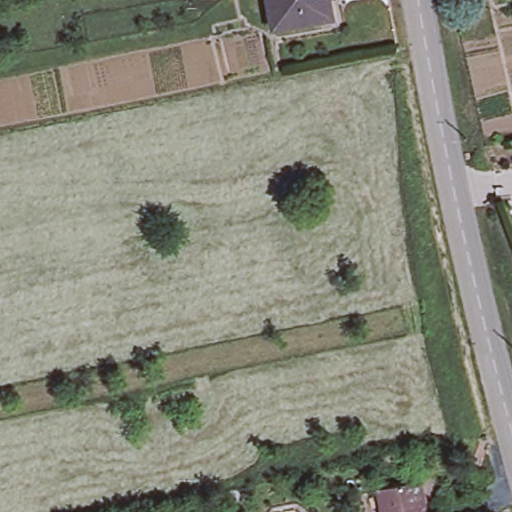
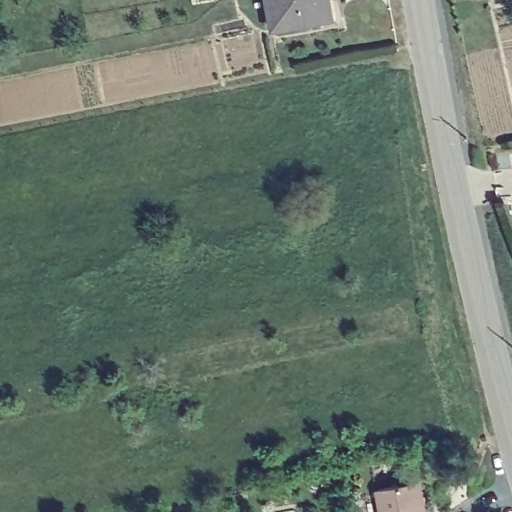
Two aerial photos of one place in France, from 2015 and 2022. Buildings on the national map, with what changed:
unchanged [(323,0),(325,11),(326,15),(273,25),(272,21),(269,0),(323,0)]
unchanged [(378,488),(420,478),(428,512),(383,512),(378,488)]

